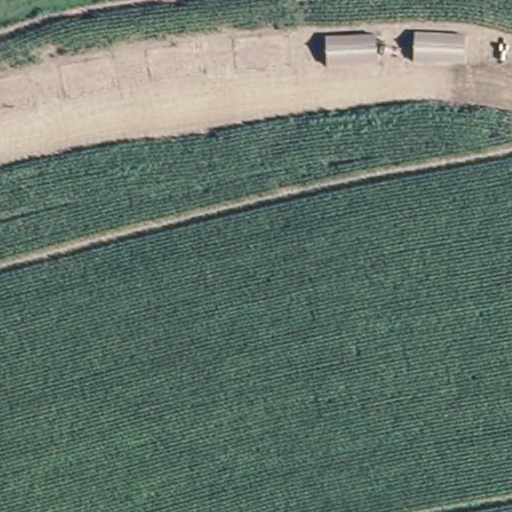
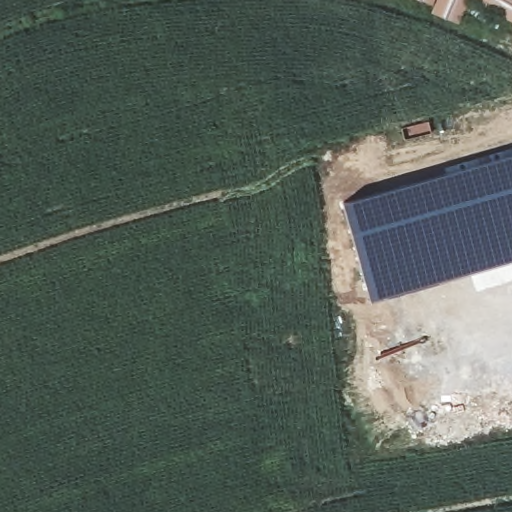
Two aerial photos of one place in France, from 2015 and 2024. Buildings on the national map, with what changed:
new [(512,24),(500,16),(506,4),(499,0),(512,0),(512,24)]
demolished [(325,30),(378,29),(380,60),(327,63),(325,30)]
demolished [(414,30),(466,33),(463,62),(413,60),(414,30)]
demolished [(239,42),(292,37),(295,67),(245,72),(239,42)]
demolished [(149,54),(204,45),(209,73),(157,83),(149,54)]
demolished [(63,68),(116,60),(121,89),(70,99),(63,68)]
demolished [(29,77),(37,108),(0,118),(0,85),(29,77)]
new [(492,153),(512,148),(512,263),(478,272),(471,273),(369,302),(339,203),(422,178),(492,153)]
new [(512,263),(512,280),(476,289),(471,273),(478,272),(512,263)]

